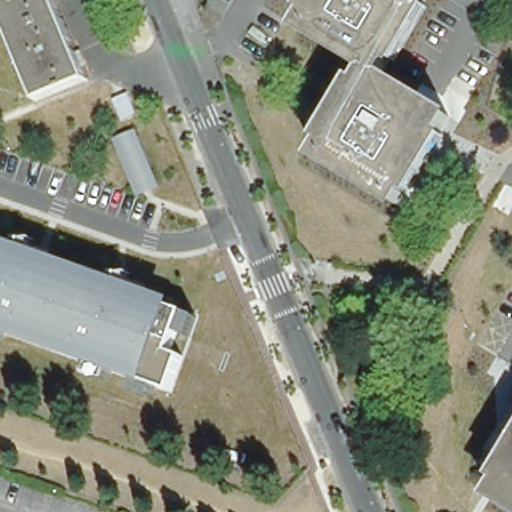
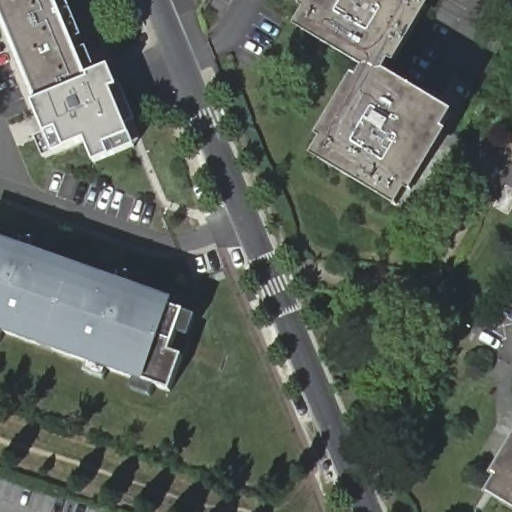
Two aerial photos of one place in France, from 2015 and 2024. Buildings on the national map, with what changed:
unchanged [(0,15),(0,0),(55,0),(89,81),(37,102),(0,15)]
unchanged [(404,184),(393,202),(372,190),(336,168),(314,155),(325,137),(317,132),(349,80),(356,84),(366,67),(355,61),(318,40),(297,27),(308,8),(301,4),(303,0),(420,0),(418,3),(426,8),(393,60),(387,56),(377,73),(388,80),(425,102),(446,114),(435,132),(442,137),(411,188),(404,184)]
new [(89,81),(87,76),(110,66),(118,88),(134,120),(126,123),(131,135),(136,146),(110,157),(95,163),(85,140),(65,149),(52,154),(44,158),(36,138),(46,134),(34,106),(34,103),(37,102),(89,81)]
unchanged [(172,308),(182,312),(197,317),(191,336),(175,331),(169,349),(185,355),(172,392),(147,383),(0,333),(0,238),(175,299),(172,308)]
unchanged [(489,495),(500,477),(492,473),(512,440),(512,508),(511,507),(489,495)]

